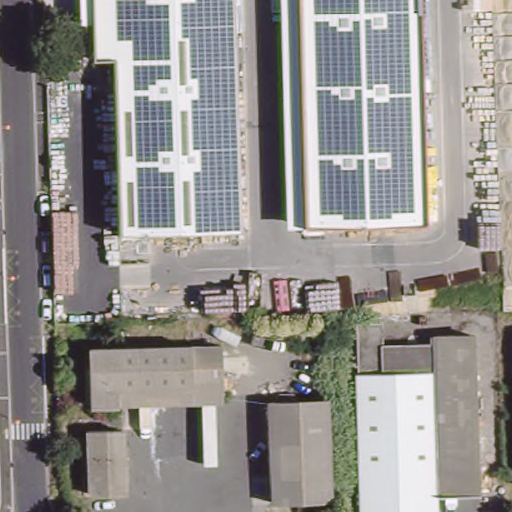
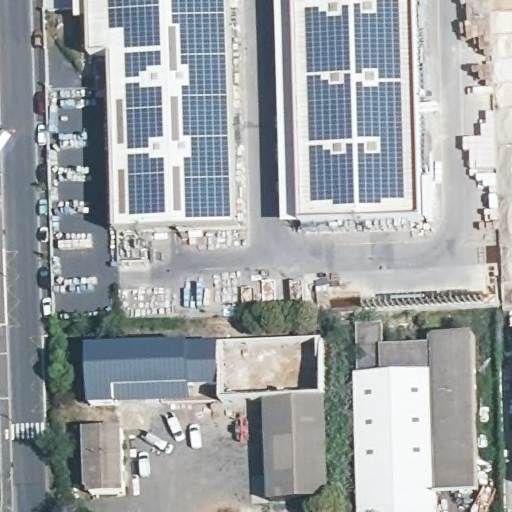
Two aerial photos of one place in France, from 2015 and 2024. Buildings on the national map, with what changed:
unchanged [(123,231),(116,57),(96,57),(94,0),(237,0),(246,228),(204,229),(123,231)]
unchanged [(283,0),(420,0),(425,217),(287,225),(283,0)]
unchanged [(429,351),(429,344),(473,344),(477,497),(433,499),(432,512),(358,512),(353,332),(377,331),(378,351),(429,351)]
unchanged [(123,405),(91,406),(90,345),(121,350),(123,405)]
unchanged [(223,403),(123,405),(121,350),(221,348),(223,403)]
unchanged [(326,501),(269,502),(267,401),(323,400),(326,501)]
unchanged [(125,498),(89,498),(87,436),(123,435),(125,498)]

